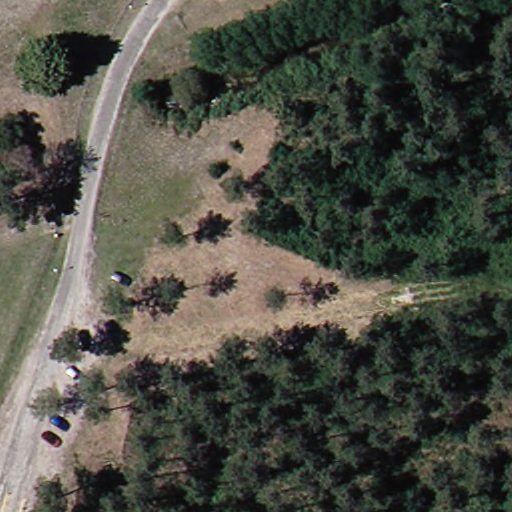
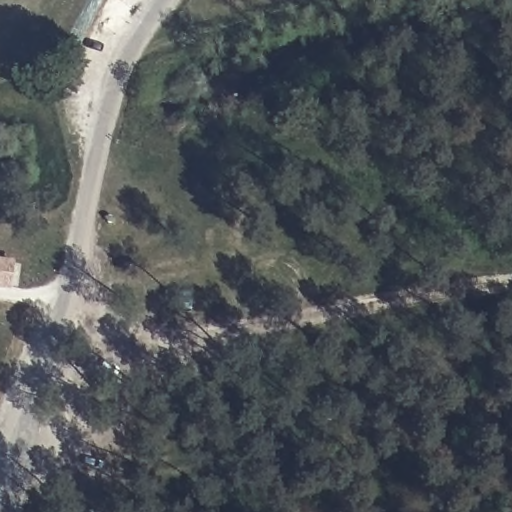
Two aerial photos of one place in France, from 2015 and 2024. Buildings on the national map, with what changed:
new [(15,259),(12,289),(0,288),(0,257),(15,259)]

